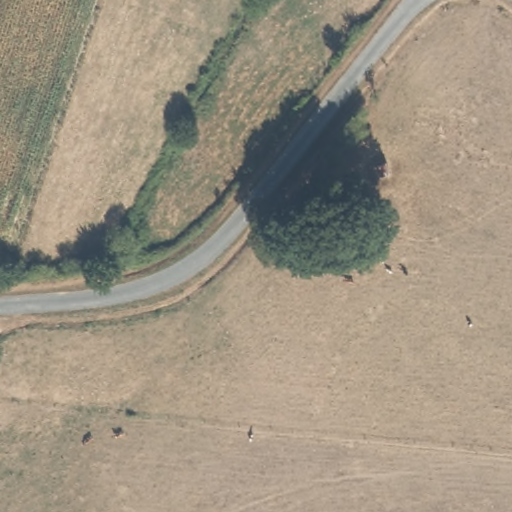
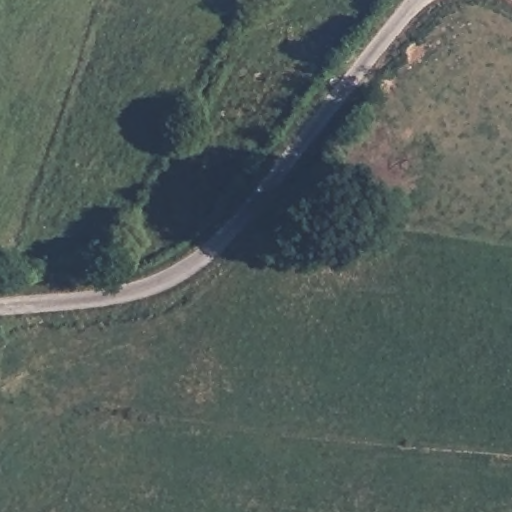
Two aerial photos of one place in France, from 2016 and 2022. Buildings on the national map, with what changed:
[]

